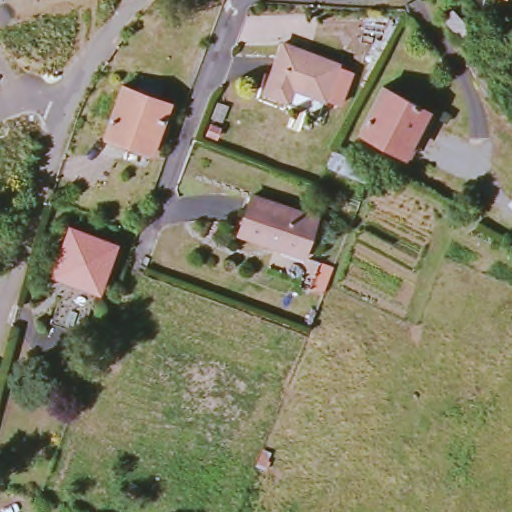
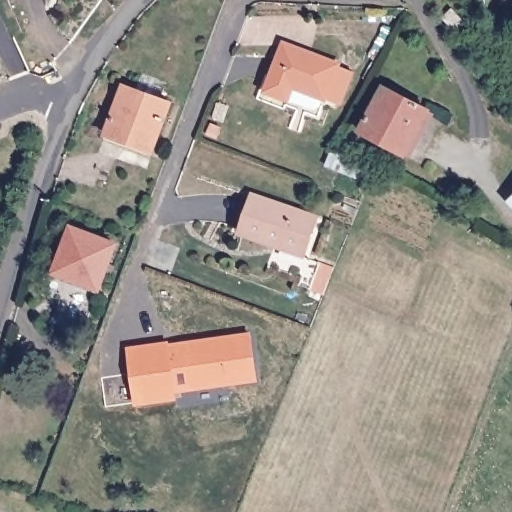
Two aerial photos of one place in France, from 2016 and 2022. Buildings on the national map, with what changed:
unchanged [(266,94),(276,71),(284,46),(340,66),(330,91),(326,100),(295,89),(290,102),(266,94)]
unchanged [(105,136),(124,87),(170,104),(158,136),(151,152),(105,136)]
unchanged [(364,132),(388,90),(432,114),(409,156),(364,132)]
unchanged [(512,197),(512,213),(504,205),(512,197)]
unchanged [(276,242),(273,250),(254,243),(237,237),(243,217),(250,200),(314,221),(304,252),(276,242)]
unchanged [(63,278),(56,276),(73,231),(116,247),(99,291),(63,278)]
demolished [(99,291),(82,336),(48,323),(63,278),(99,291)]
new [(129,350),(168,342),(169,345),(250,328),(259,372),(178,390),(180,397),(141,405),(111,411),(105,382),(135,375),(129,350)]

